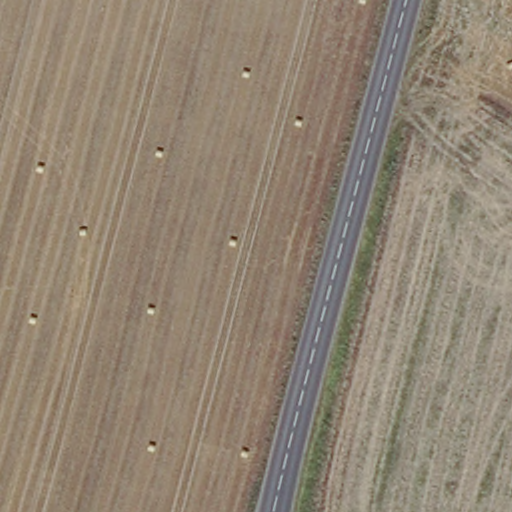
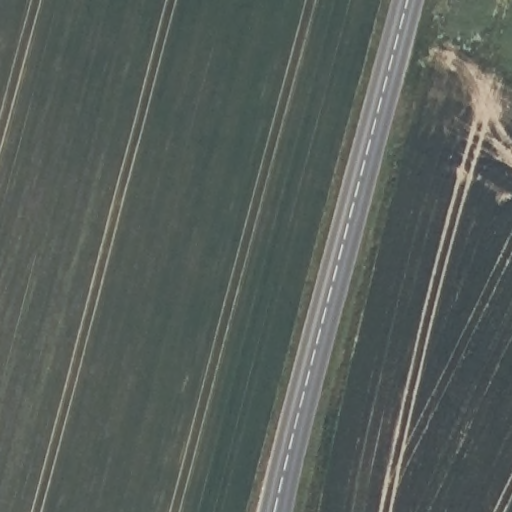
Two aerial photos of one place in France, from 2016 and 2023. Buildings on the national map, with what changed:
[]

